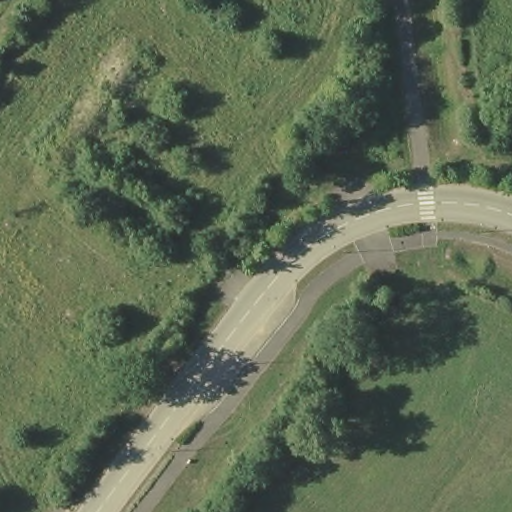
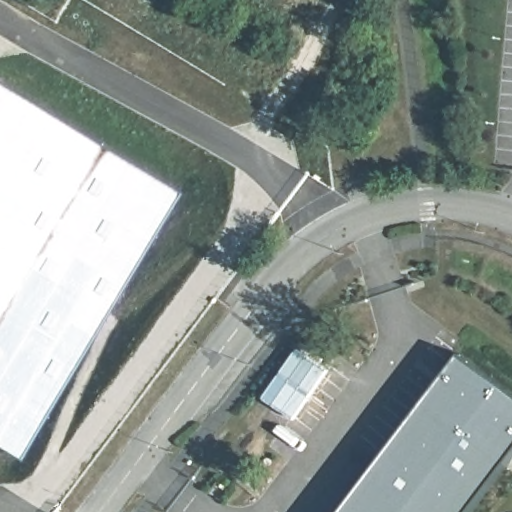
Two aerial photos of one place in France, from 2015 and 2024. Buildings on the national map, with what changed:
new [(173,191),(12,453),(0,446),(0,86),(173,191)]
new [(512,393),(512,459),(472,512),(345,512),(462,355),(512,393)]

